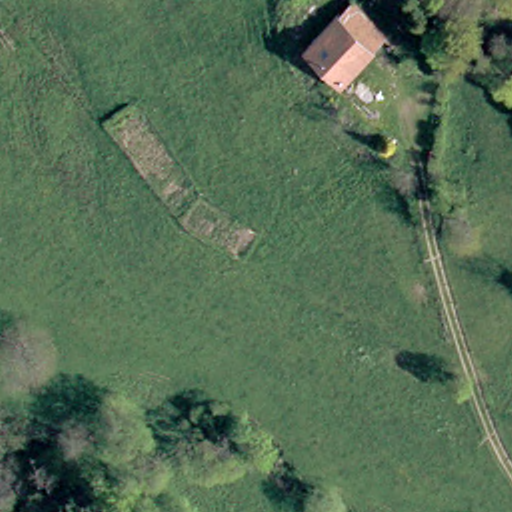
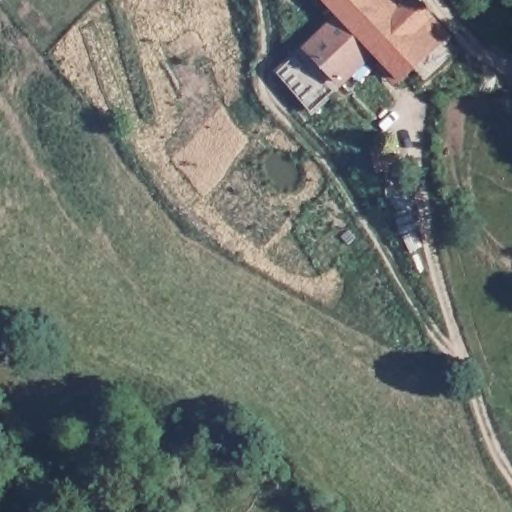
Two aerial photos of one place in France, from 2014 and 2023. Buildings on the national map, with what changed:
new [(452,36),(402,84),(370,52),(338,18),(320,0),(419,0),(452,36)]
unchanged [(370,52),(336,82),(304,49),(338,18),(370,52)]

